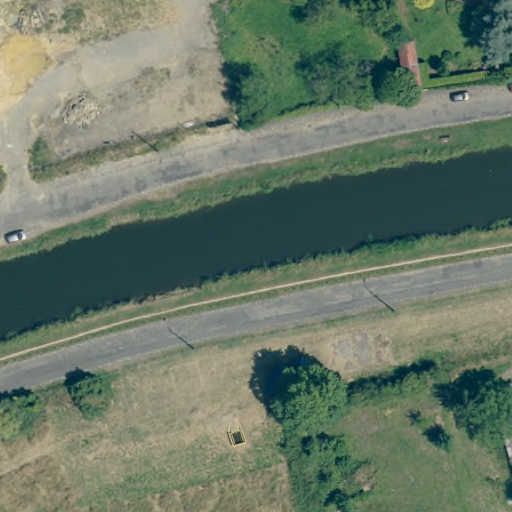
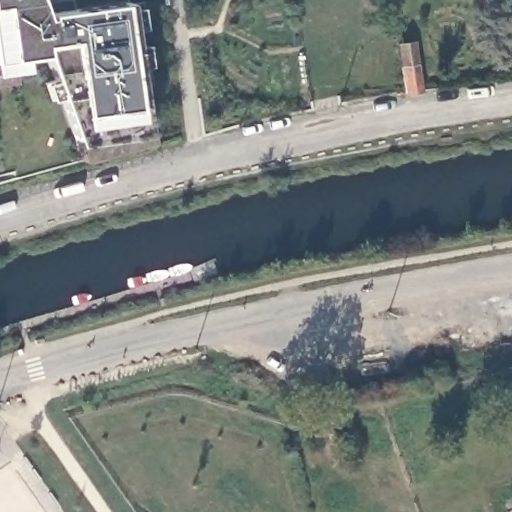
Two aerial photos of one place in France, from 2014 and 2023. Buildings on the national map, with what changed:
demolished [(167,0),(167,1),(146,7),(149,18),(14,54),(0,3),(0,0),(167,0)]
new [(47,16),(46,13),(120,3),(128,1),(147,135),(150,143),(83,161),(76,144),(44,55),(41,54),(23,56),(25,70),(13,71),(14,83),(0,84),(0,0),(36,0),(41,18),(47,16)]
unchanged [(415,64),(419,90),(403,91),(399,66),(415,64)]
demolished [(512,477),(494,418),(512,413),(512,477)]

